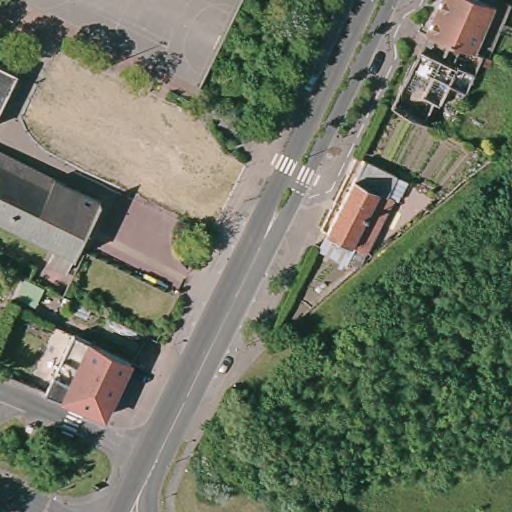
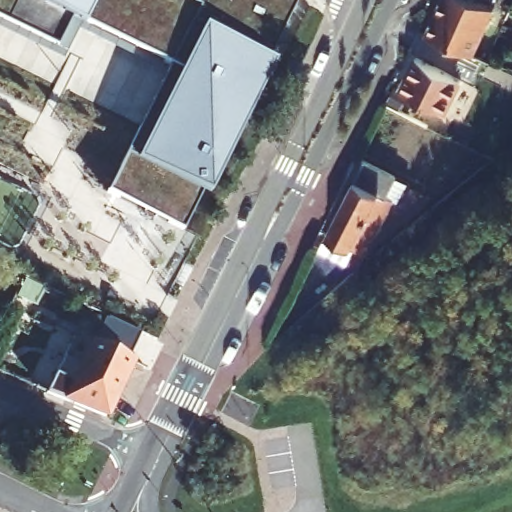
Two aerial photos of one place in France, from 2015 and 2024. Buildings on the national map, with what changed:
new [(180,228),(107,191),(169,66),(72,19),(60,42),(0,16),(0,0),(288,0),(296,4),(180,228)]
unchanged [(488,0),(468,47),(423,28),(435,0),(488,0)]
demolished [(423,28),(468,47),(477,51),(460,87),(444,80),(434,100),(428,97),(418,117),(387,102),(423,28)]
new [(462,77),(447,108),(402,86),(417,55),(462,77)]
demolished [(0,62),(14,69),(0,96),(0,62)]
demolished [(206,191),(121,151),(132,126),(218,166),(206,191)]
unchanged [(412,167),(403,186),(398,184),(371,237),(368,236),(364,244),(359,241),(352,255),(324,241),(334,219),(332,217),(370,145),(412,167)]
demolished [(62,267),(44,259),(52,244),(0,218),(0,149),(97,197),(62,267)]
new [(45,291),(37,305),(20,296),(27,281),(45,291)]
unchanged [(47,388),(57,367),(64,351),(74,328),(133,357),(107,412),(47,388)]

